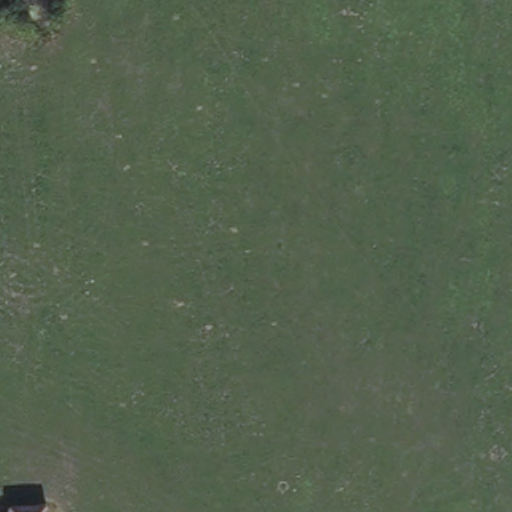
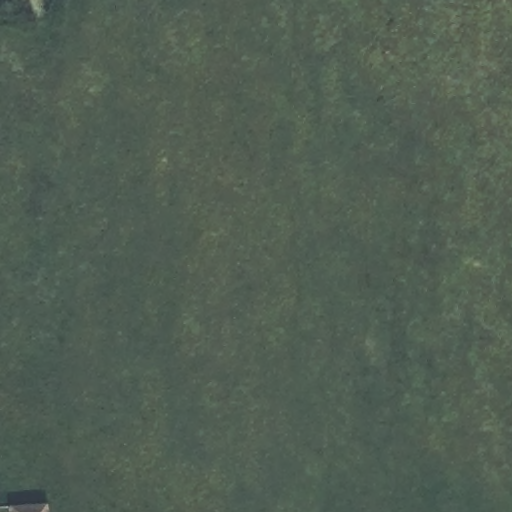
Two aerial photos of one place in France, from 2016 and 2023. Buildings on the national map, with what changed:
unchanged [(46,512),(13,512),(45,507),(46,512)]

